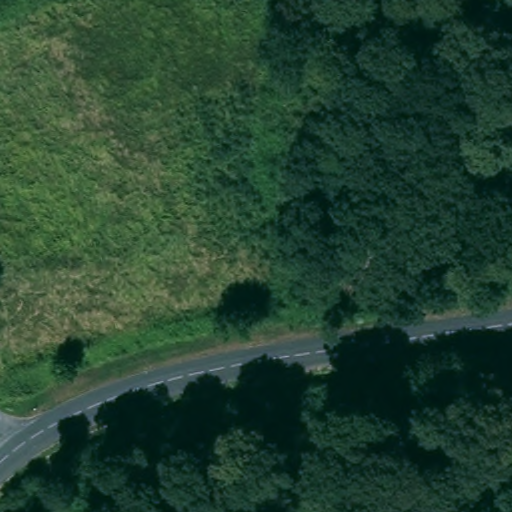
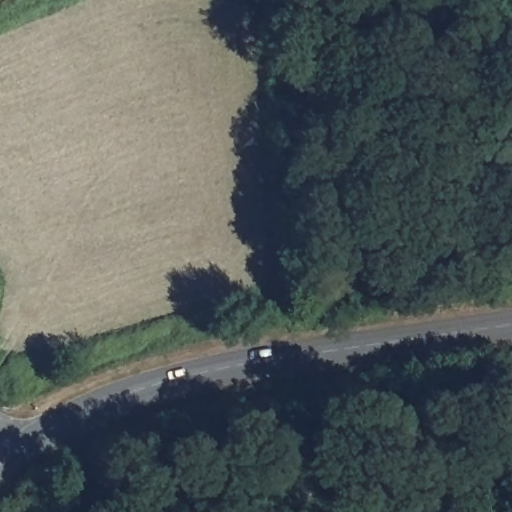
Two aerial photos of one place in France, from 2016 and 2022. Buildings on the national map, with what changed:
[]

